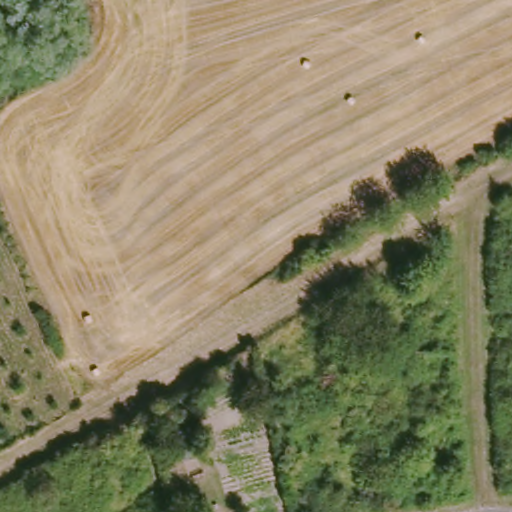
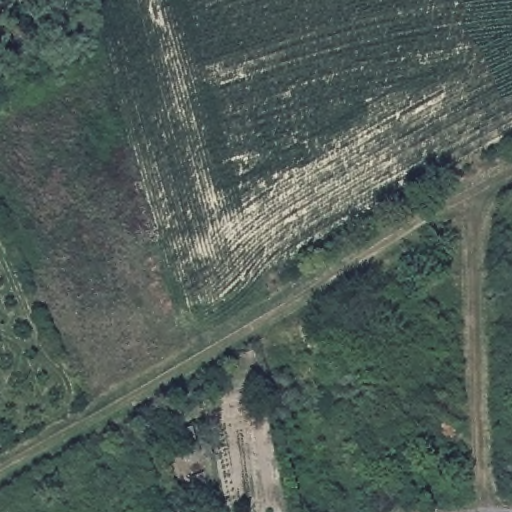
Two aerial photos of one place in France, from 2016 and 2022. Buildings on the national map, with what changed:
unchanged [(203,460),(181,465),(171,433),(193,425),(203,460)]

